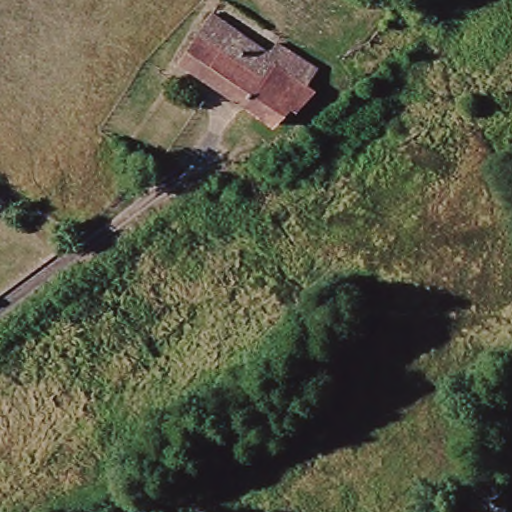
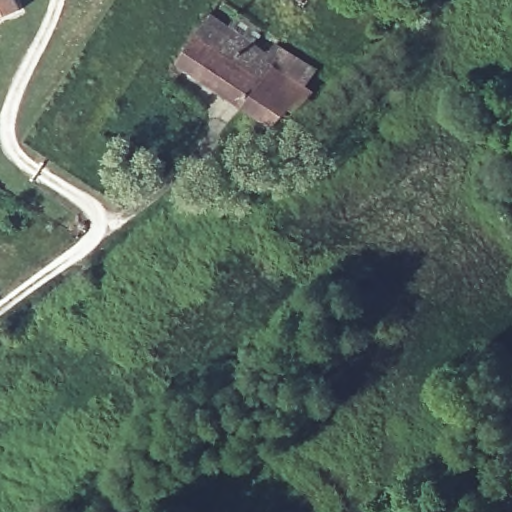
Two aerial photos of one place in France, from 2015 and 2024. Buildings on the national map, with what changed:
new [(0,19),(0,0),(16,0),(20,10),(0,19)]
unchanged [(280,104),(267,124),(175,62),(205,17),(251,46),(258,34),(310,68),(301,83),(310,91),(293,112),(280,104)]

